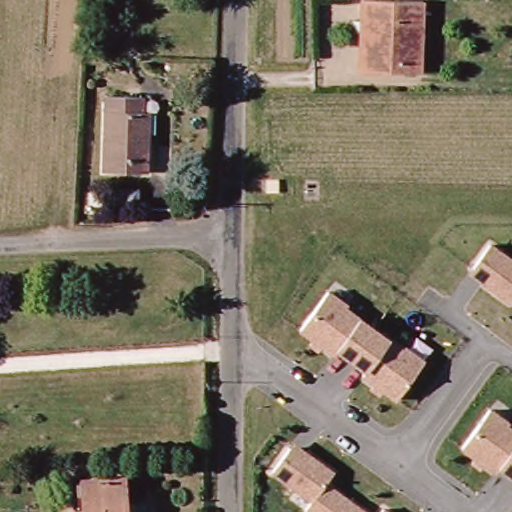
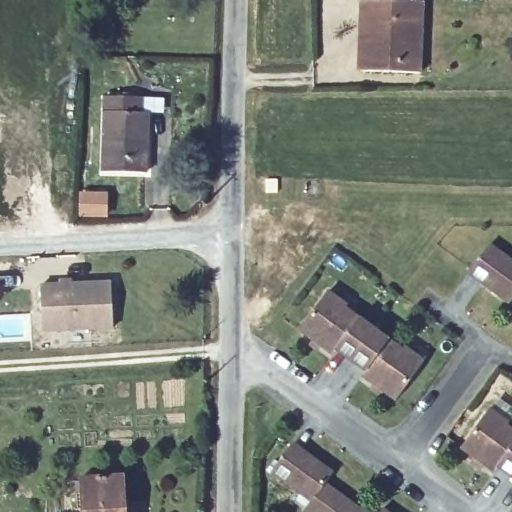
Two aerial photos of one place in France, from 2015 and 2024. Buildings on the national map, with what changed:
unchanged [(354,0),(401,0),(418,1),(413,77),(363,75),(350,75),(353,16),(354,0)]
unchanged [(99,89),(133,89),(133,107),(145,107),(144,165),(98,164),(99,89)]
unchanged [(512,258),(512,300),(508,305),(467,275),(490,242),(512,258)]
new [(41,285),(112,283),(113,330),(42,332),(41,285)]
unchanged [(364,370),(336,350),(332,355),(322,348),(319,352),(307,345),(310,340),(298,331),(328,290),(424,358),(394,400),(383,391),(379,396),(368,390),(372,384),(362,376),(364,370)]
unchanged [(497,466),(492,473),(484,467),(481,471),(469,464),(472,457),(461,449),(490,406),(512,422),(512,477),(497,466)]
unchanged [(329,481),(372,512),(307,512),(303,510),(309,500),(270,472),(293,440),(336,470),(329,481)]
unchanged [(69,476),(120,473),(120,497),(128,498),(128,512),(80,512),(79,503),(71,504),(69,476)]
unchanged [(394,512),(378,512),(384,505),(394,512)]

